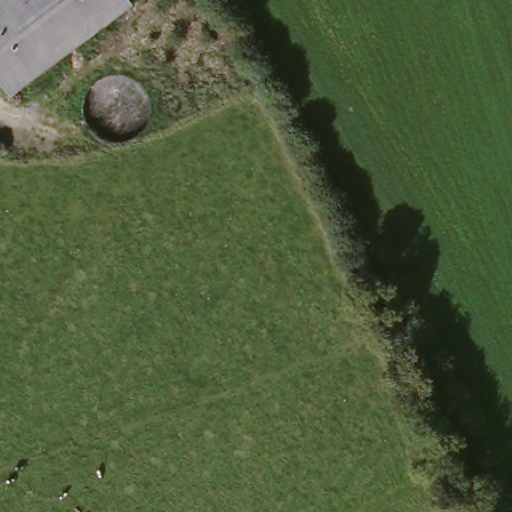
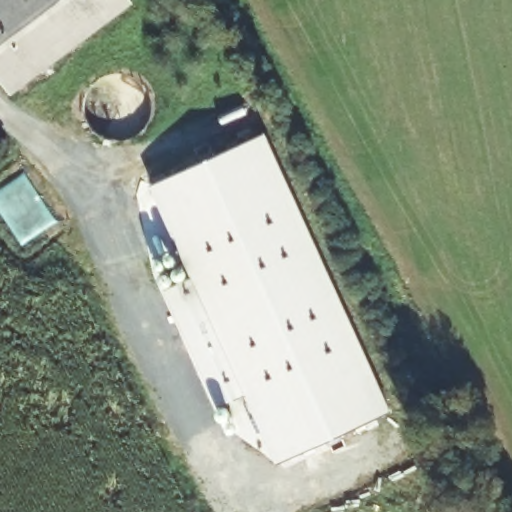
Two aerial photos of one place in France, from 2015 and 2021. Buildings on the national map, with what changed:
unchanged [(11,103),(0,90),(0,0),(125,0),(128,4),(11,103)]
new [(222,400),(166,292),(194,278),(147,189),(253,133),(396,405),(289,461),(254,393),(226,407),(222,400)]

